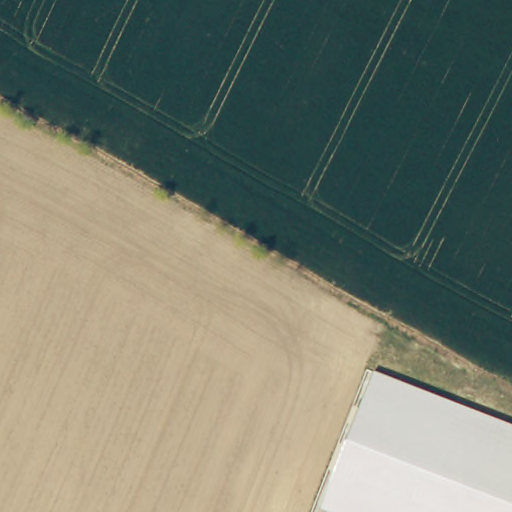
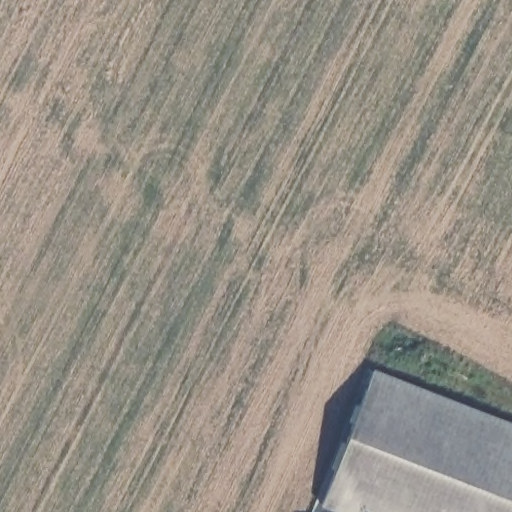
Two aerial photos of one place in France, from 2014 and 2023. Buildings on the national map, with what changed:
unchanged [(512,424),(512,512),(333,512),(320,507),(373,370),(512,424)]

